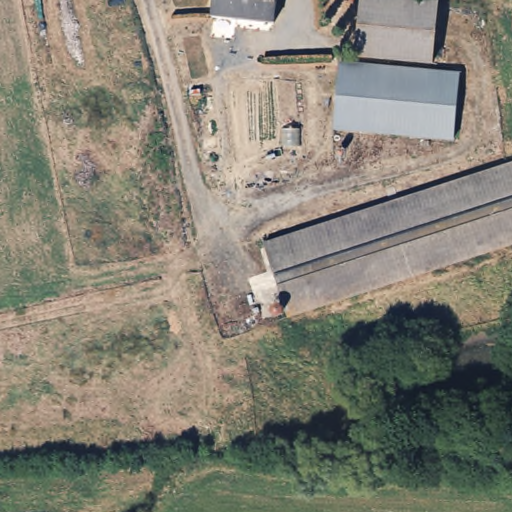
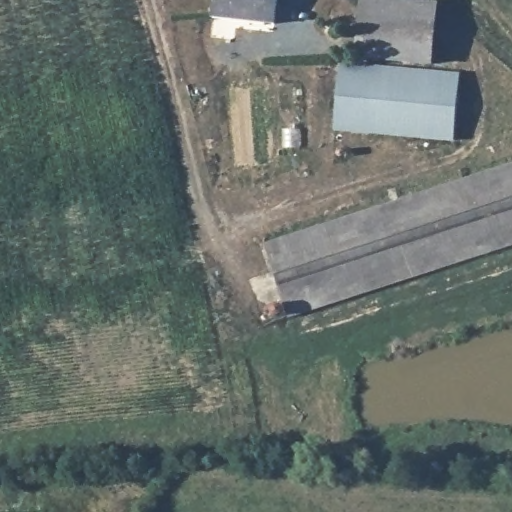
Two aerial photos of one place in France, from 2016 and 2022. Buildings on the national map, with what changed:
unchanged [(213,16),(215,0),(279,0),(276,21),(213,16)]
unchanged [(433,64),(359,55),(364,0),(391,0),(439,5),(433,64)]
unchanged [(460,73),(453,137),(335,126),(341,61),(460,73)]
unchanged [(512,245),(284,321),(263,256),(262,255),(260,249),(315,230),(512,162),(512,245)]

